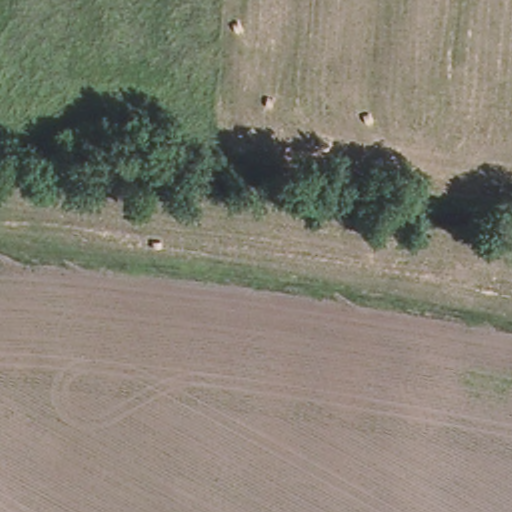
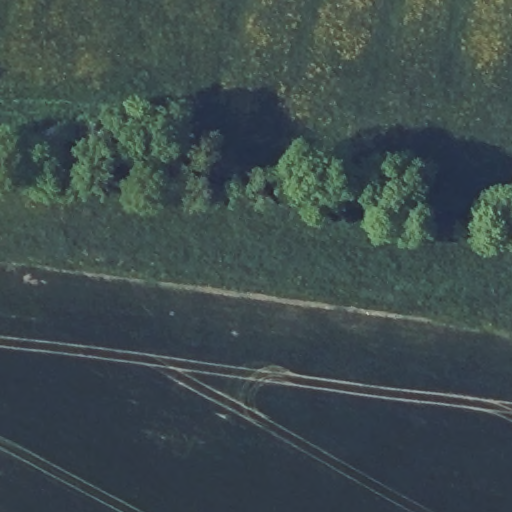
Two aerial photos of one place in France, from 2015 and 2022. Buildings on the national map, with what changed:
[]

